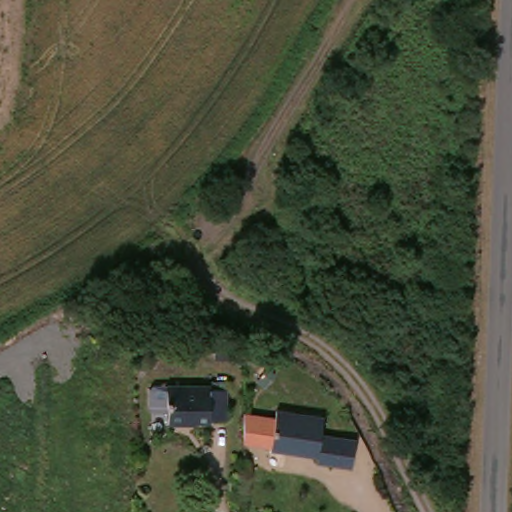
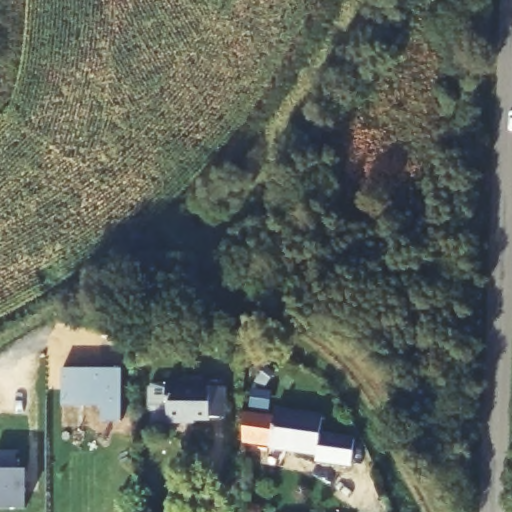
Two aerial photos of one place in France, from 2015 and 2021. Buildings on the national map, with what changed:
new [(60,365),(120,366),(119,418),(99,418),(99,402),(59,402),(60,365)]
unchanged [(205,425),(205,427),(189,426),(189,429),(162,428),(162,410),(161,410),(161,390),(206,392),(206,395),(221,395),(220,425),(205,425)]
unchanged [(322,421),(321,430),(356,436),(352,461),(238,441),(241,412),(322,421)]
unchanged [(9,447),(9,465),(19,465),(19,503),(0,503),(0,447),(9,447)]

